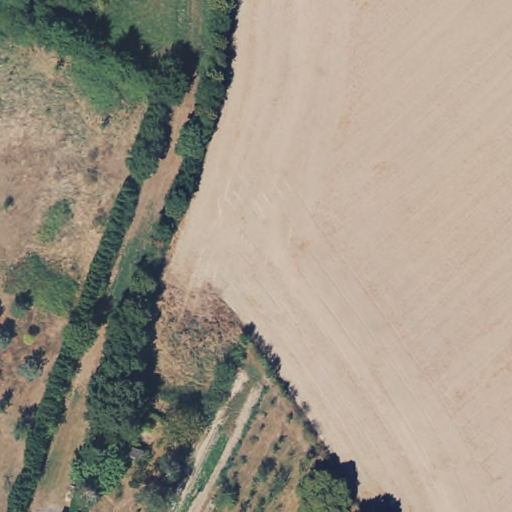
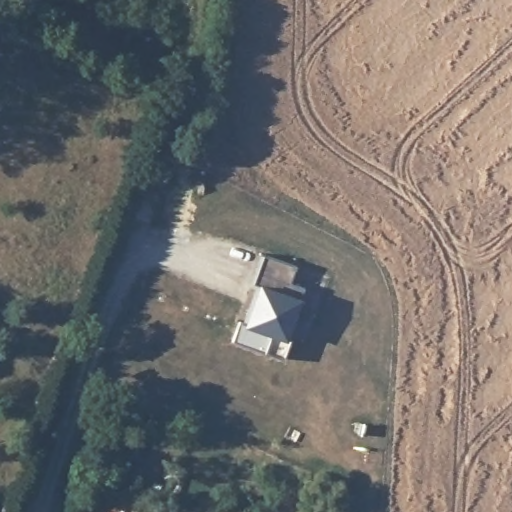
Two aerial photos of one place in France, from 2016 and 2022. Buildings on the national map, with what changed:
new [(240,321),(247,324),(260,286),(253,284),(264,254),(297,266),(291,283),(305,288),(287,338),(292,340),(285,359),(233,341),(240,321)]
unchanged [(142,450),(138,460),(127,456),(131,446),(142,450)]

